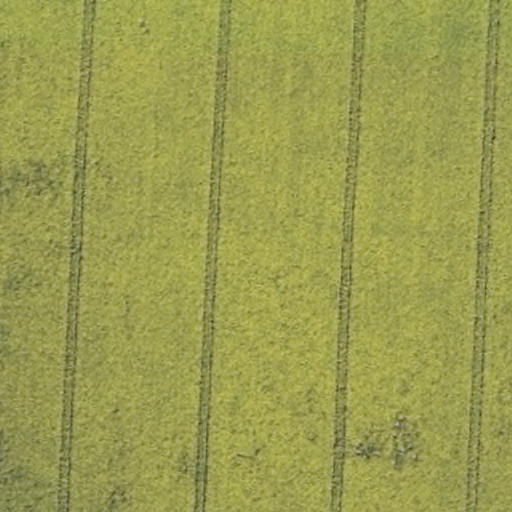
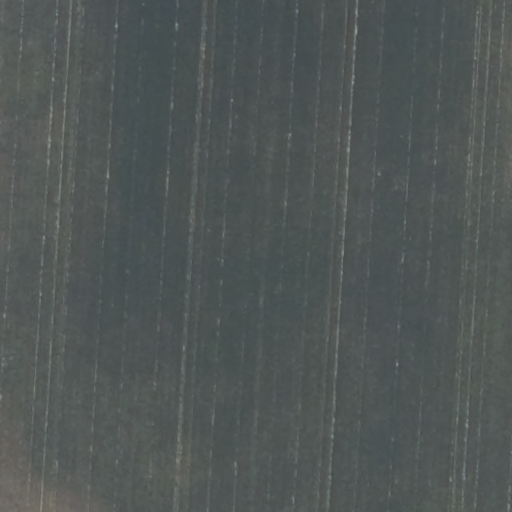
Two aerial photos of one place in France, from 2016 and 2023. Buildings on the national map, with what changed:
[]

